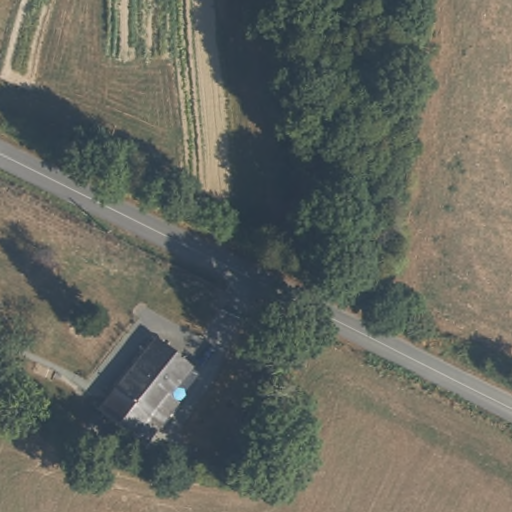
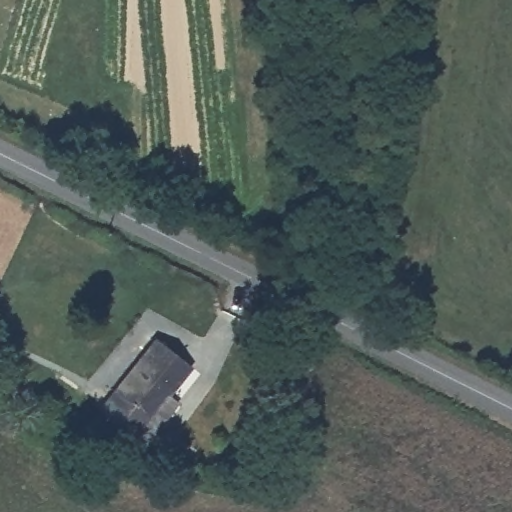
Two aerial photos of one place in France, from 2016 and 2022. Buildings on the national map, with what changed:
unchanged [(159,426),(141,447),(96,411),(155,337),(189,362),(166,390),(180,400),(159,426)]

